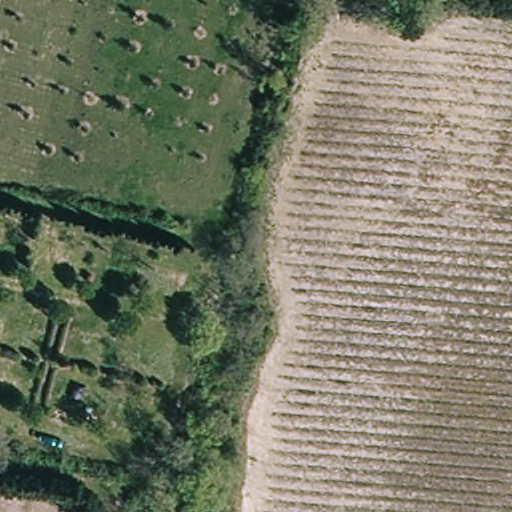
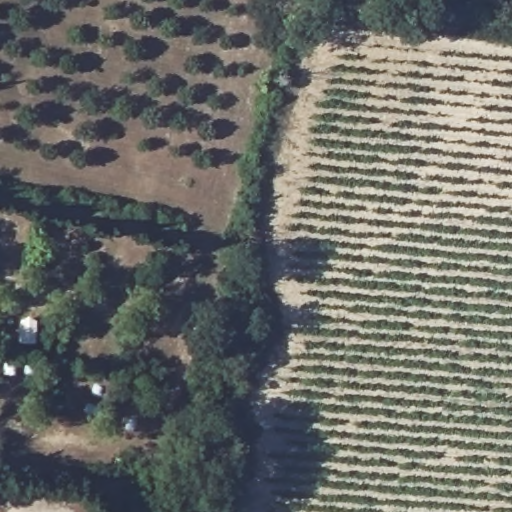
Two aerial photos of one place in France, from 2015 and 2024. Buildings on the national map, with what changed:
[]

